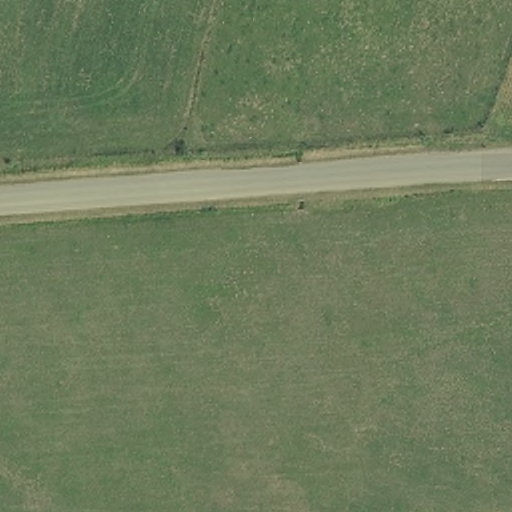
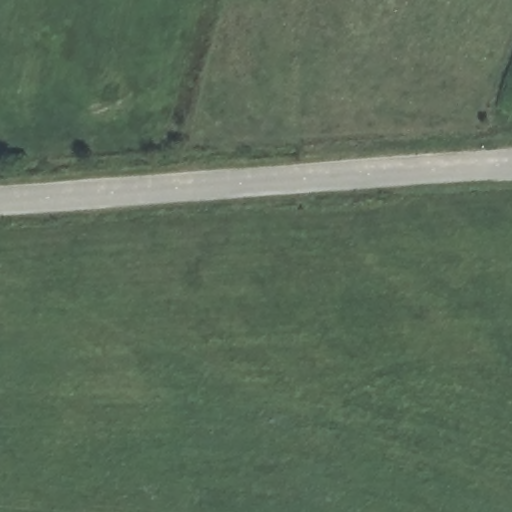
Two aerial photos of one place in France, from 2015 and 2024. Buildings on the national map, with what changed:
[]

